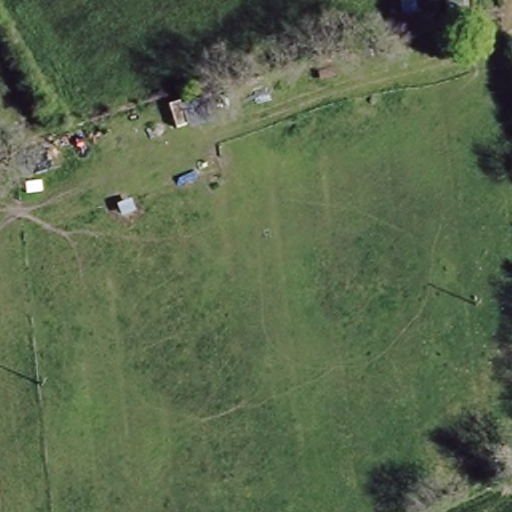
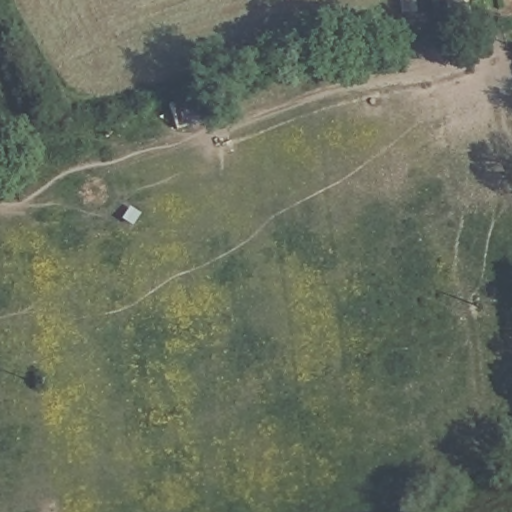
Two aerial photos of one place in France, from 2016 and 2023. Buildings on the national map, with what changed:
unchanged [(185,106),(209,99),(214,121),(187,128),(185,106)]

